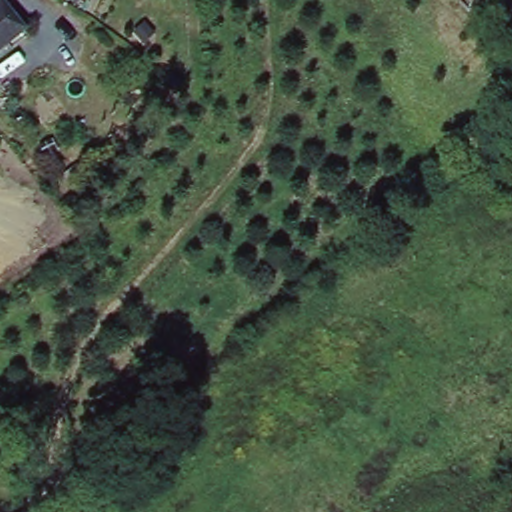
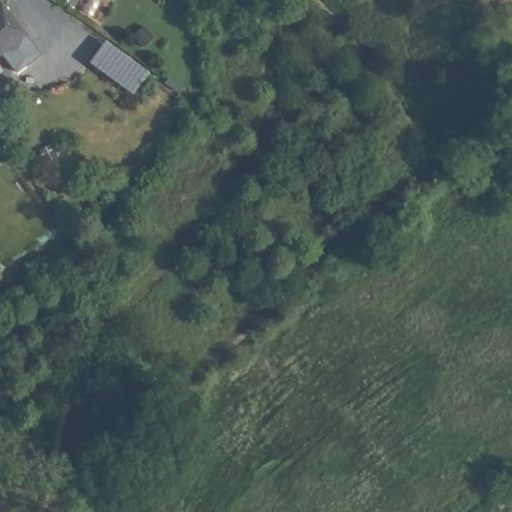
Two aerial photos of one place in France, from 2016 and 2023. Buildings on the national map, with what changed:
unchanged [(6,49),(0,54),(0,9),(22,34),(26,39),(10,53),(6,49)]
new [(151,66),(131,88),(83,55),(105,32),(151,66)]

